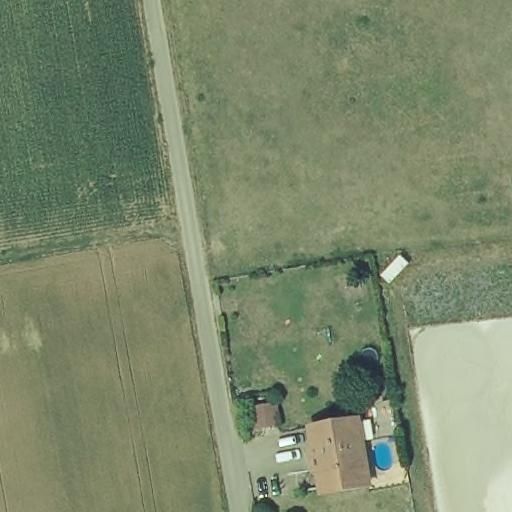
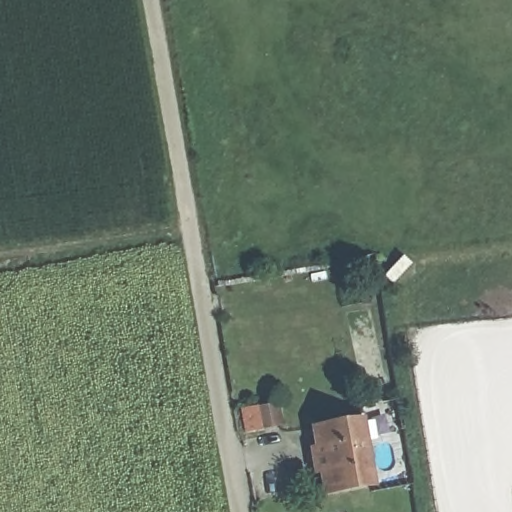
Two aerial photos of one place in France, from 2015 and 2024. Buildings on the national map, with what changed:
unchanged [(355,417),(365,478),(317,487),(307,426),(355,417)]

